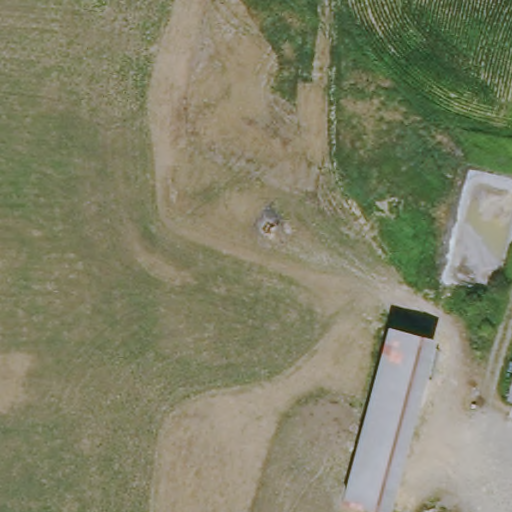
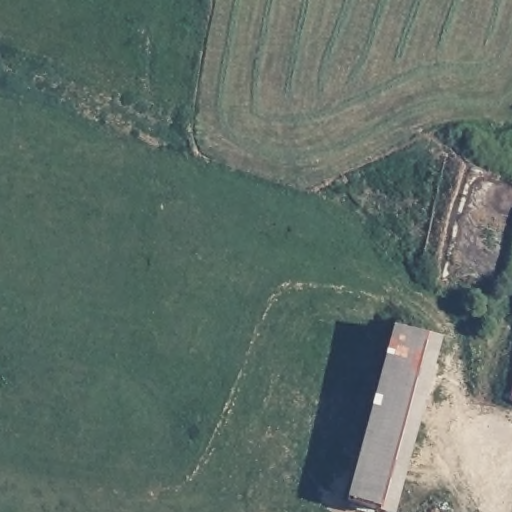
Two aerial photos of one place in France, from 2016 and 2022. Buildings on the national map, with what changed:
unchanged [(400,330),(440,341),(431,360),(392,509),(392,512),(374,512),(355,508),(400,330)]
unchanged [(512,378),(512,401),(506,399),(512,378)]

